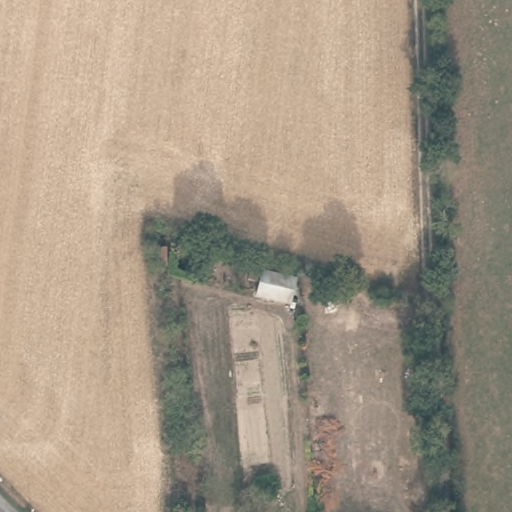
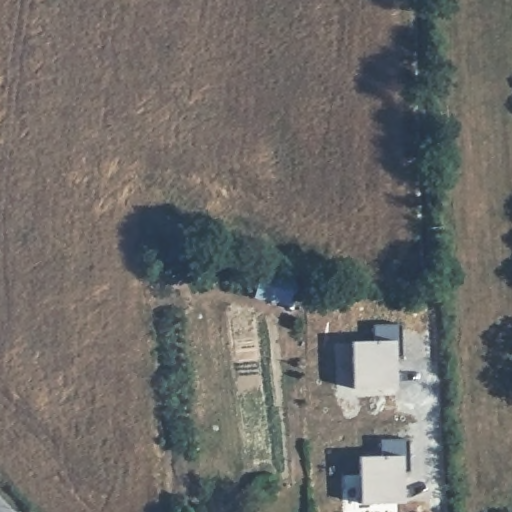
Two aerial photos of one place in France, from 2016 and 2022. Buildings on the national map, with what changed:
unchanged [(297,281),(291,302),(291,305),(258,298),(264,273),(282,277),(297,281)]
new [(354,389),(352,340),(374,340),(373,324),(402,323),(405,356),(395,357),(396,388),(354,389)]
new [(362,504),(360,456),(382,456),(382,439),(408,438),(410,471),(402,472),(403,503),(362,504)]

